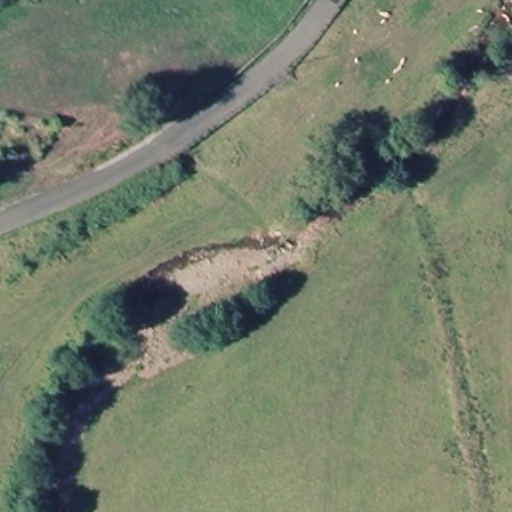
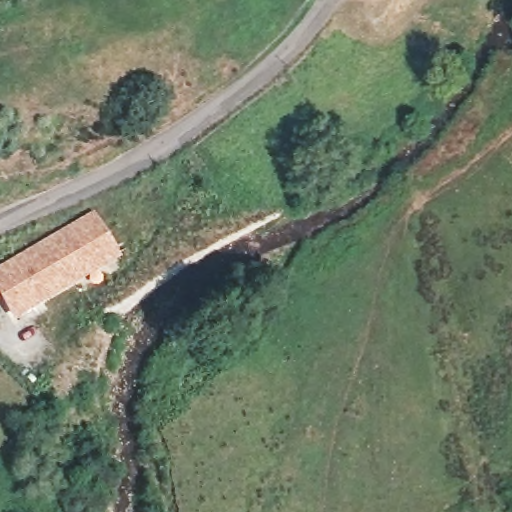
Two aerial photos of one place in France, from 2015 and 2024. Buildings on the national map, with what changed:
new [(119,257),(13,320),(1,296),(0,297),(0,265),(94,210),(119,257)]

